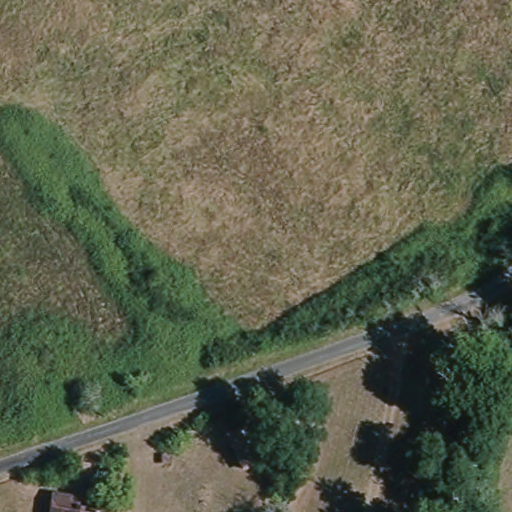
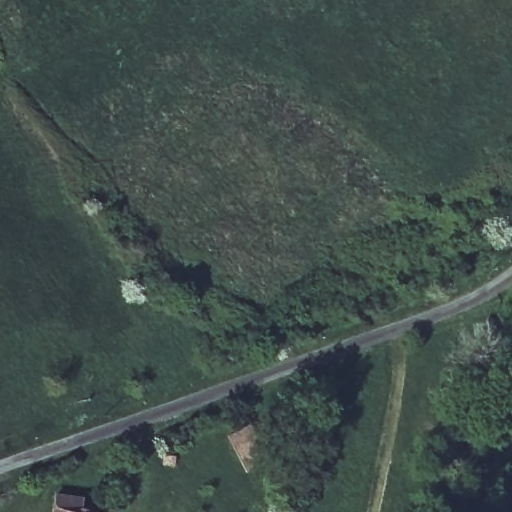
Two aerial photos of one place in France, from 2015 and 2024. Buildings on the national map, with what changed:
unchanged [(259,472),(263,468),(241,448),(255,433),(288,463),(270,482),(259,472)]
unchanged [(75,503),(73,512),(51,512),(53,500),(75,503)]

